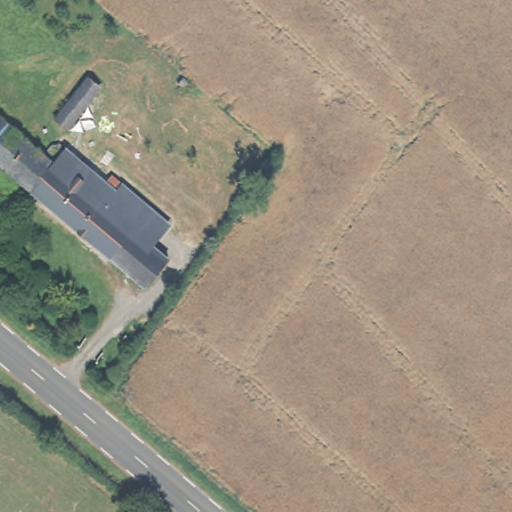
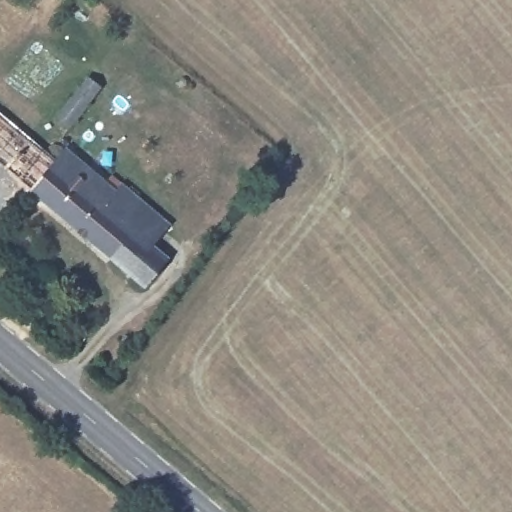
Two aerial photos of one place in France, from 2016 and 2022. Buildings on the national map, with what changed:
unchanged [(81,70),(105,90),(74,128),(70,125),(51,107),(81,70)]
unchanged [(63,166),(39,195),(0,163),(0,114),(60,164),(63,166)]
unchanged [(109,181),(115,175),(124,183),(108,203),(157,245),(174,259),(151,288),(39,195),(63,166),(60,164),(59,160),(58,156),(59,152),(61,150),(64,148),(67,148),(71,149),(75,152),(109,181)]
unchanged [(174,225),(157,245),(108,203),(124,183),(174,225)]

